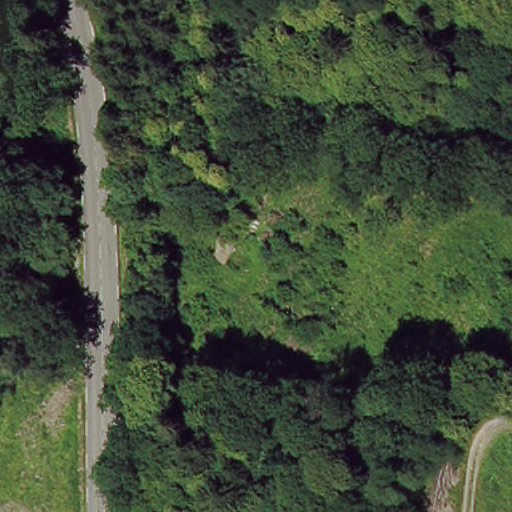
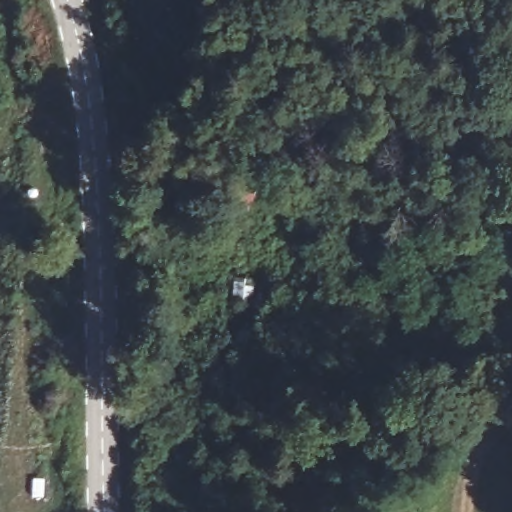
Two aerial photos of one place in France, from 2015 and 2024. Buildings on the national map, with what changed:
[]

